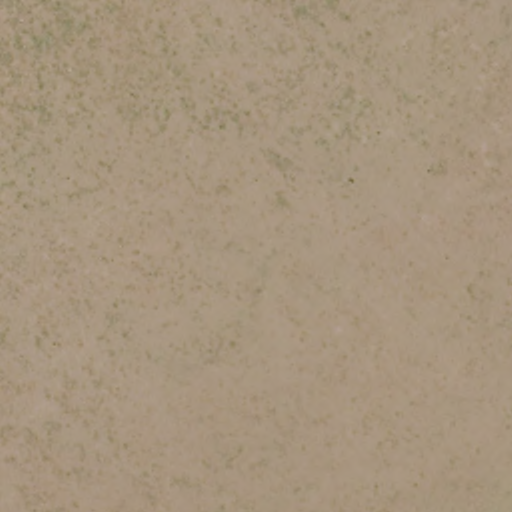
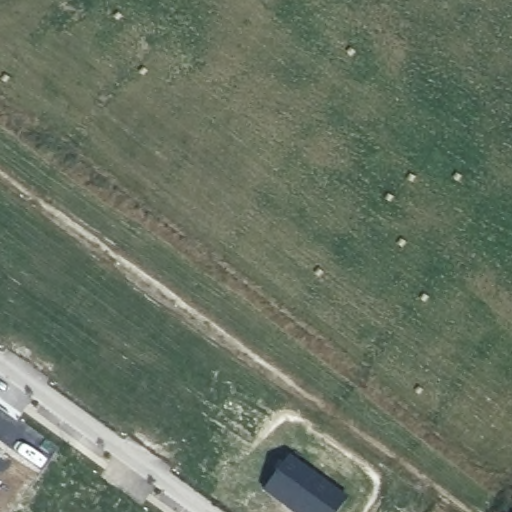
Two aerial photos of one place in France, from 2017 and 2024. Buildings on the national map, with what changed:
new [(338,512),(291,512),(263,491),(289,455),(348,498),(338,512)]

